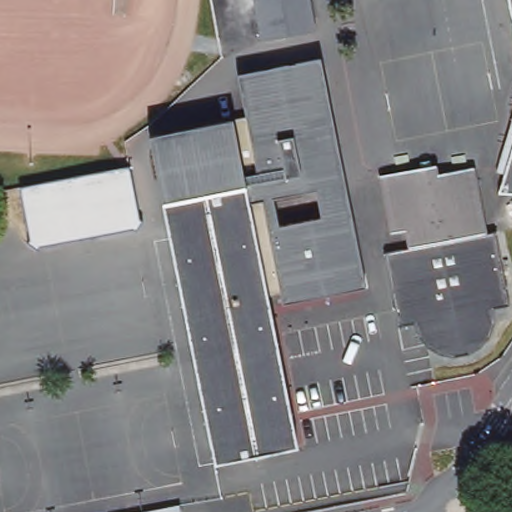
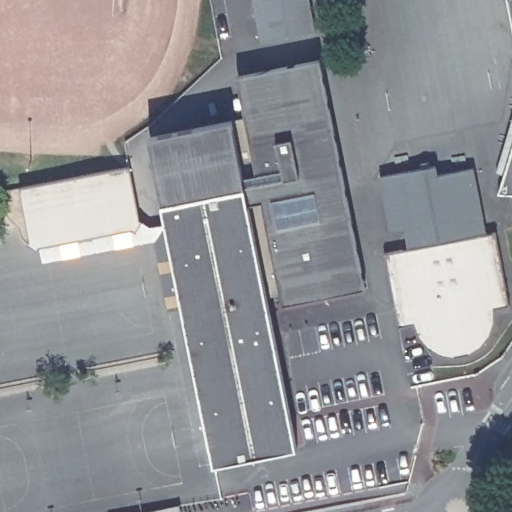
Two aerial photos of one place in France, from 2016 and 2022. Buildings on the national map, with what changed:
unchanged [(267,60),(256,0),(310,0),(320,51),(267,60)]
unchanged [(512,0),(512,7),(510,0),(512,0)]
unchanged [(364,290),(281,307),(262,200),(248,202),(296,447),(214,462),(148,136),(232,119),(242,174),(255,172),(237,75),(319,60),(364,290)]
unchanged [(492,190),(502,162),(512,139),(512,198),(507,187),(492,190)]
unchanged [(386,251),(398,248),(410,245),(406,227),(394,230),(391,231),(380,175),(382,174),(421,166),(419,160),(429,157),(431,164),(435,162),(437,172),(472,165),(486,230),(495,229),(507,286),(511,302),(497,306),(497,317),(495,326),(494,333),(491,340),(488,348),(486,352),(482,357),(477,361),(457,360),(444,355),(436,350),(429,345),(424,338),(419,332),(417,326),(415,321),(412,322),(401,324),(398,308),(386,251)]
unchanged [(138,216),(143,219),(136,230),(132,227),(37,246),(36,249),(26,242),(28,239),(17,187),(128,163),(138,216)]
unchanged [(180,505),(182,512),(143,512),(180,505)]

